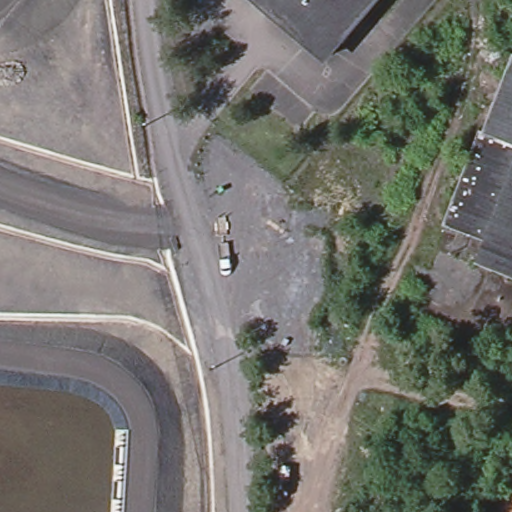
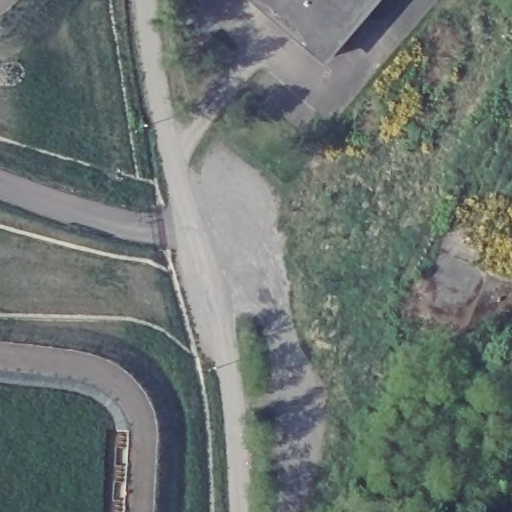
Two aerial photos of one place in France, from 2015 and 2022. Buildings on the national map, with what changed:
unchanged [(248,0),(374,0),(310,62),(248,0)]
demolished [(477,262),(485,239),(444,222),(479,131),(485,133),(512,57),(512,276),(477,262)]
demolished [(339,231),(348,235),(350,227),(362,232),(360,240),(367,242),(361,260),(369,262),(355,302),(346,298),(339,318),(330,315),(326,324),(317,320),(319,312),(310,307),(339,231)]

